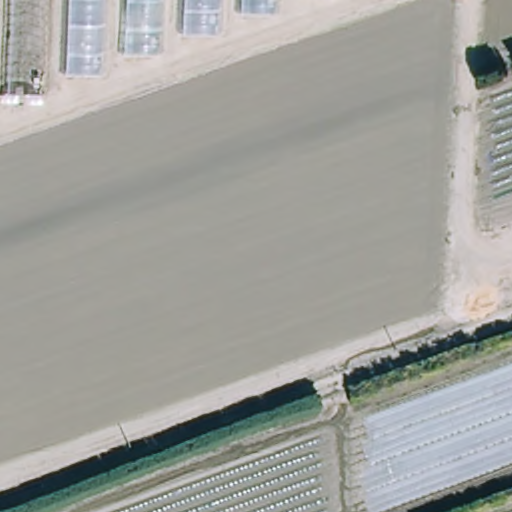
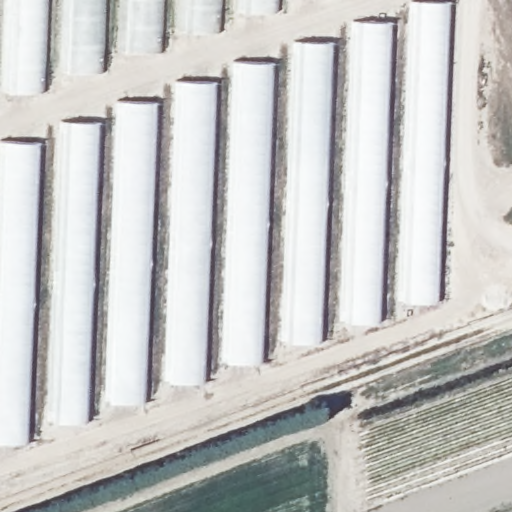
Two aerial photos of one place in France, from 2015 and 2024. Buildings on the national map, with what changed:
unchanged [(304,0),(0,97),(0,0),(304,0)]
new [(395,299),(408,0),(450,0),(437,299),(395,299)]
new [(340,318),(352,15),(390,19),(379,321),(340,318)]
new [(320,342),(279,339),(291,39),(332,40),(320,342)]
new [(235,57),(271,60),(256,361),(219,358),(235,57)]
new [(202,381),(162,379),(175,76),(215,79),(202,381)]
new [(104,399),(117,98),(153,99),(140,400),(104,399)]
new [(84,422),(45,418),(58,117),(97,120),(84,422)]
new [(0,440),(0,175),(1,139),(35,140),(22,441),(0,440)]

